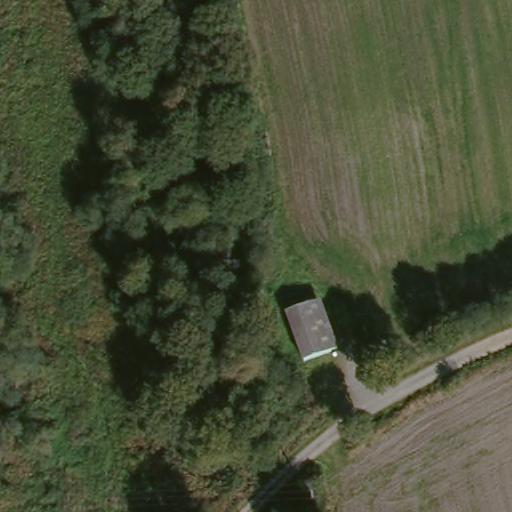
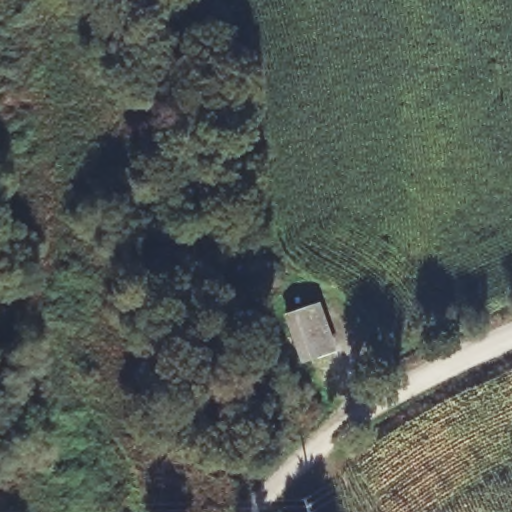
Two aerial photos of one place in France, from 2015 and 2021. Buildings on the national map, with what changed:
unchanged [(324,296),(345,350),(303,366),(285,312),(324,296)]

